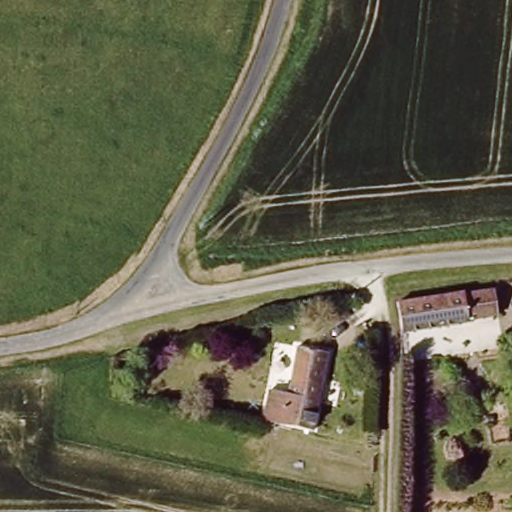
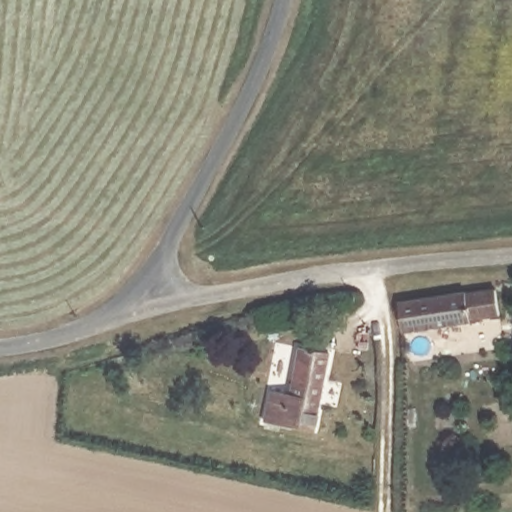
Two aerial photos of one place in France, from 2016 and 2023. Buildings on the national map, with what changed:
unchanged [(400,326),(398,299),(422,297),(428,289),(432,287),(438,288),(443,290),(444,292),(490,288),(493,320),(480,321),(479,313),(485,313),(483,296),(469,297),(472,322),(400,326)]
unchanged [(314,317),(314,330),(300,330),(300,317),(314,317)]
unchanged [(310,426),(264,415),(271,385),(286,388),(297,341),(328,348),(310,426)]

